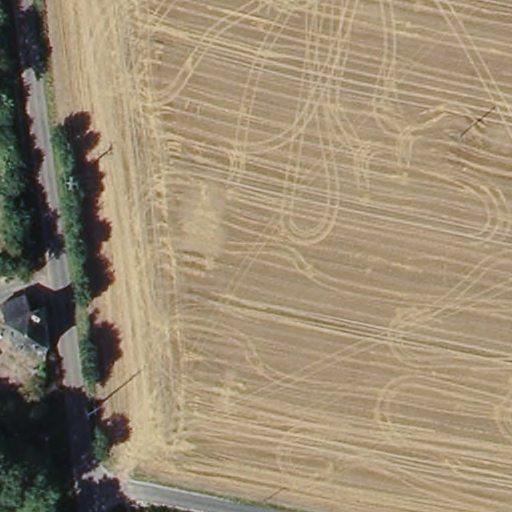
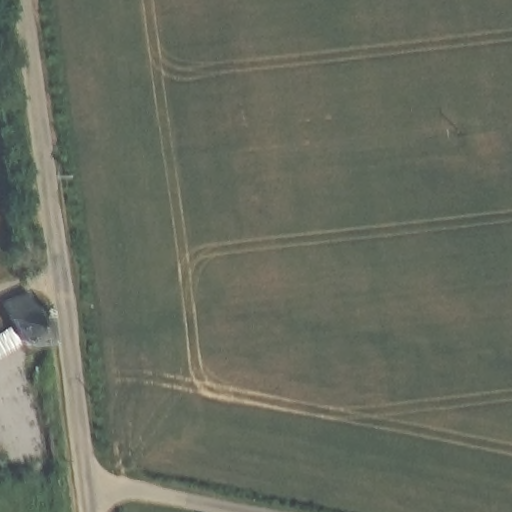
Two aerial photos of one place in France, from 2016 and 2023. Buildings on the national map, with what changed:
unchanged [(52,306),(57,345),(42,344),(26,340),(13,333),(1,323),(0,319),(0,304),(22,295),(28,312),(46,306),(52,306)]

